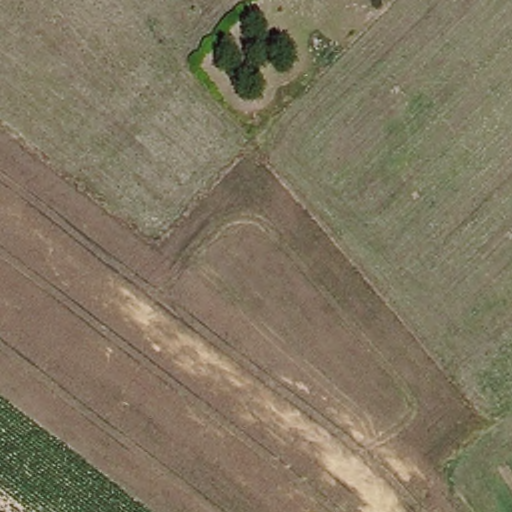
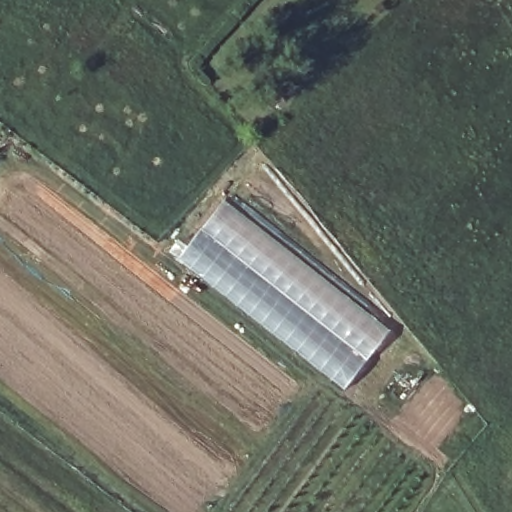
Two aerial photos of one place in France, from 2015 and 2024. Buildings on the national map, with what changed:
new [(223,197),(389,330),(369,351),(368,349),(373,342),(330,310),(326,315),(328,317),(328,322),(326,330),(316,322),(251,272),(198,227),(223,197)]
new [(176,237),(184,244),(198,227),(251,272),(316,322),(311,328),(320,337),(318,339),(319,341),(341,363),(346,361),(351,361),(355,362),(361,365),(343,389),(320,370),(173,258),(165,251),(176,237)]

